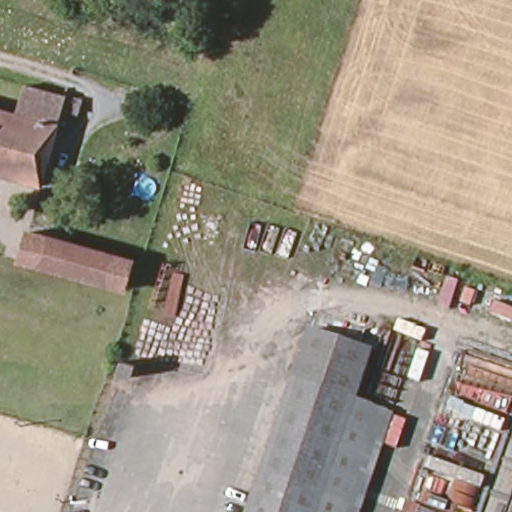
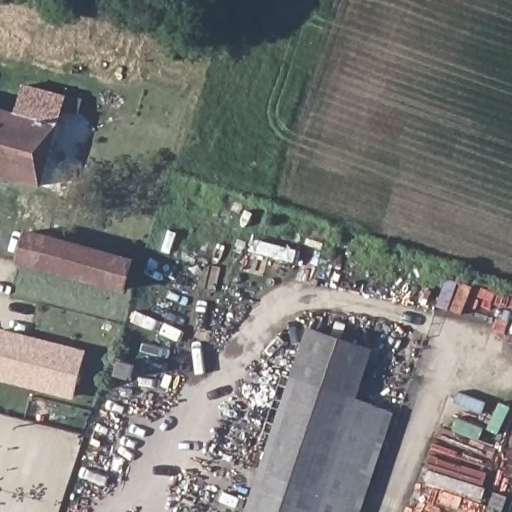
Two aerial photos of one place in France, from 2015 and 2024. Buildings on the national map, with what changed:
unchanged [(39,190),(0,179),(0,114),(15,118),(24,90),(63,101),(39,190)]
unchanged [(27,232),(129,260),(122,289),(18,262),(27,232)]
new [(0,380),(0,328),(86,349),(73,399),(0,380)]
unchanged [(305,335),(369,357),(353,404),(390,416),(359,512),(247,512),(305,335)]

